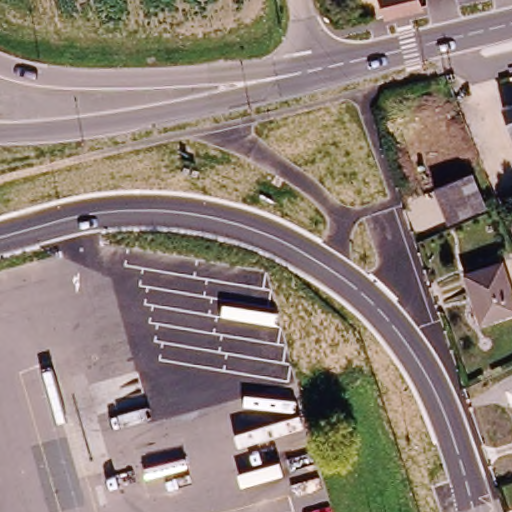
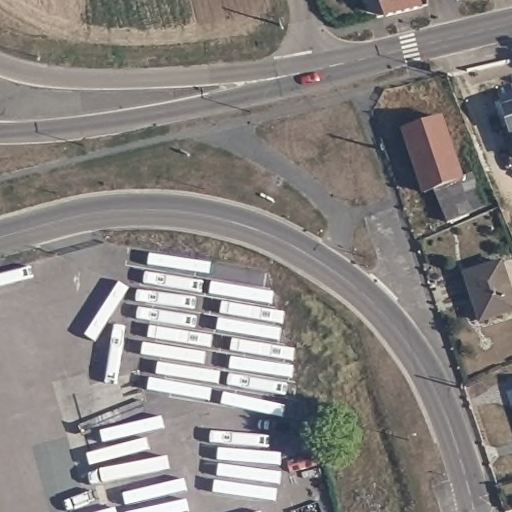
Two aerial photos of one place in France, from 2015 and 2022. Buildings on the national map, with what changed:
unchanged [(379,11),(375,0),(420,0),(421,1),(379,11)]
unchanged [(502,136),(493,110),(512,104),(512,159),(509,160),(502,136)]
new [(434,188),(422,193),(402,131),(443,117),(463,177),(434,188)]
unchanged [(484,210),(447,222),(434,188),(470,175),(484,210)]
unchanged [(478,316),(463,267),(497,257),(512,305),(478,316)]

